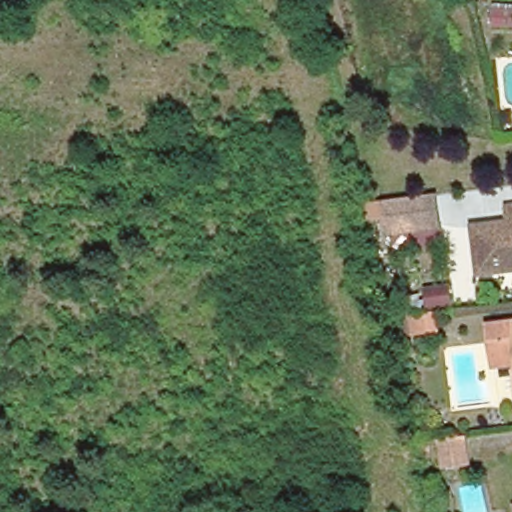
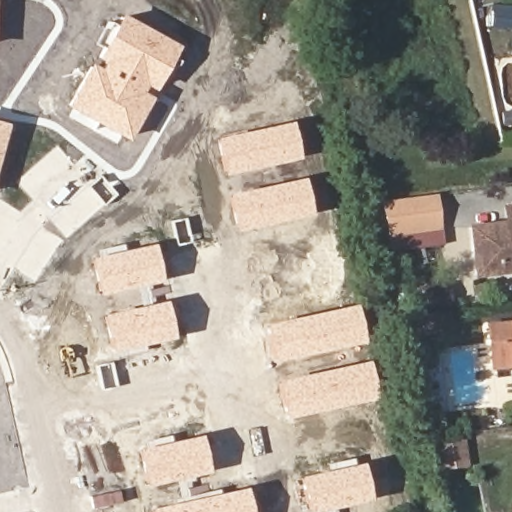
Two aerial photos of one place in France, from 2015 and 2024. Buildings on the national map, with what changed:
new [(146,86),(146,91),(153,98),(129,142),(66,106),(91,63),(100,67),(103,62),(96,59),(123,14),(181,46),(155,91),(146,86)]
new [(10,124),(0,157),(0,121),(10,124)]
new [(223,175),(215,139),(291,122),(299,157),(223,175)]
new [(236,232),(227,195),(303,177),(312,214),(236,232)]
unchanged [(386,202),(436,195),(439,227),(392,234),(386,202)]
unchanged [(474,223),(510,219),(508,204),(512,203),(512,267),(480,272),(474,223)]
new [(99,295),(90,258),(154,244),(163,281),(99,295)]
new [(421,290),(444,286),(446,310),(423,312),(403,315),(402,304),(422,302),(421,290)]
new [(111,352),(103,315),(167,301),(175,337),(111,352)]
new [(274,362),(265,324),(356,305),(364,342),(274,362)]
unchanged [(485,321),(512,318),(512,365),(489,367),(485,321)]
new [(284,418),(276,381),(368,361),(376,398),(284,418)]
new [(206,467),(182,472),(181,468),(152,473),(147,446),(199,436),(206,467)]
new [(468,468),(440,471),(434,442),(464,440),(468,468)]
demolished [(488,471),(460,473),(454,445),(485,442),(488,471)]
new [(298,476),(362,462),(370,500),(311,512),(306,512),(298,476)]
new [(150,508),(246,487),(251,512),(151,512),(150,508)]

